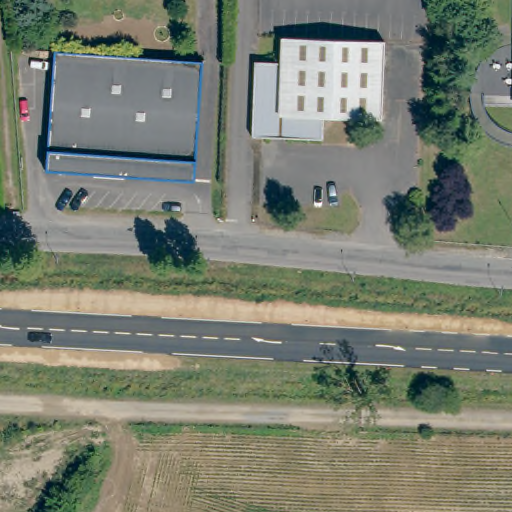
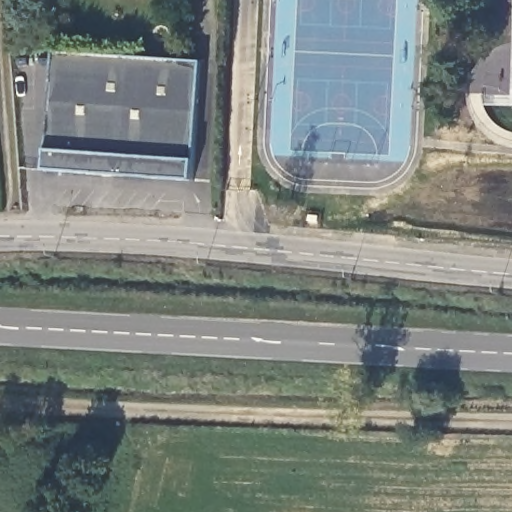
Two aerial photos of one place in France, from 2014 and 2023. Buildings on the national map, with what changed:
demolished [(385,124),(329,123),(328,147),(258,144),(260,69),(286,70),(286,46),(387,50),(385,124)]
unchanged [(50,48),(199,58),(191,178),(41,167),(50,48)]
unchanged [(464,100),(465,89),(469,78),(475,69),(484,61),(493,55),(504,51),(512,51),(512,102),(464,100)]

